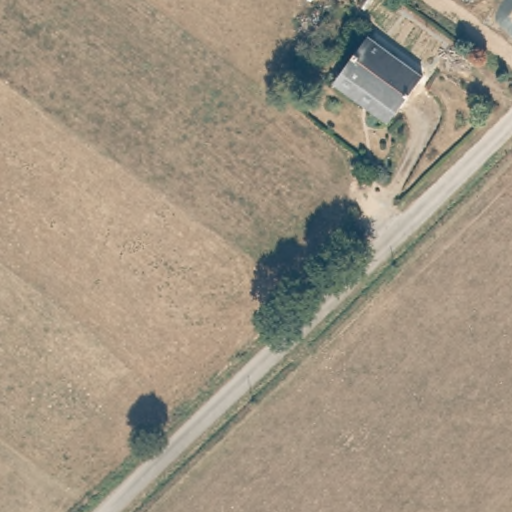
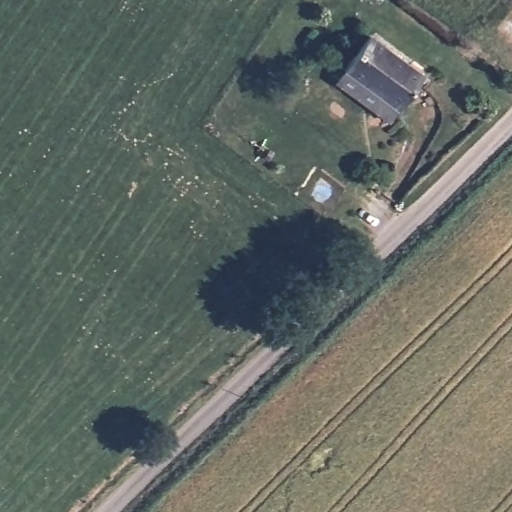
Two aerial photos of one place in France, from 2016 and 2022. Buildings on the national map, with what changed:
unchanged [(424,71),(401,102),(349,64),(370,34),(424,71)]
unchanged [(390,116),(338,80),(349,64),(401,102),(390,116)]

